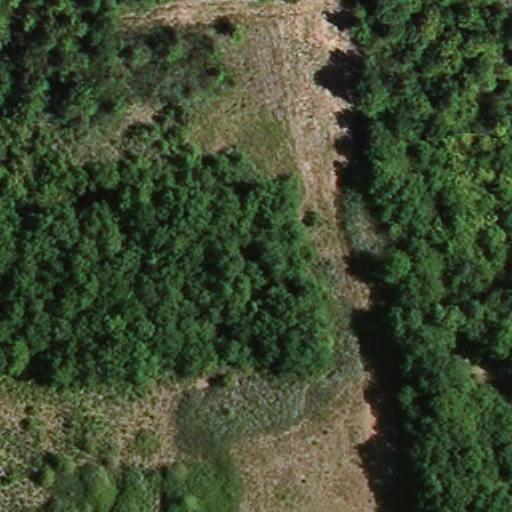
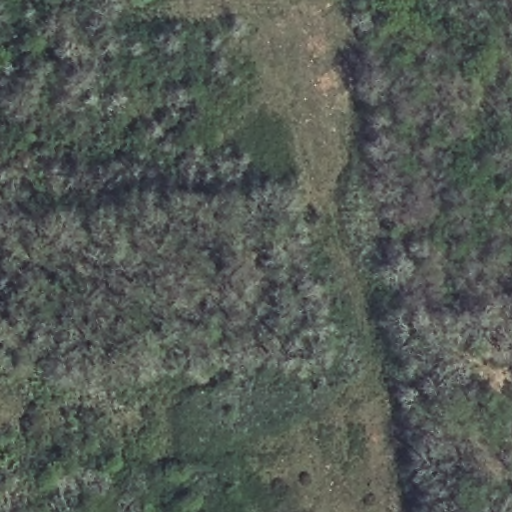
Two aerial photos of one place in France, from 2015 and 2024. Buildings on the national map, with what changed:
unchanged [(177,7),(176,0),(195,0),(195,5),(177,7)]

